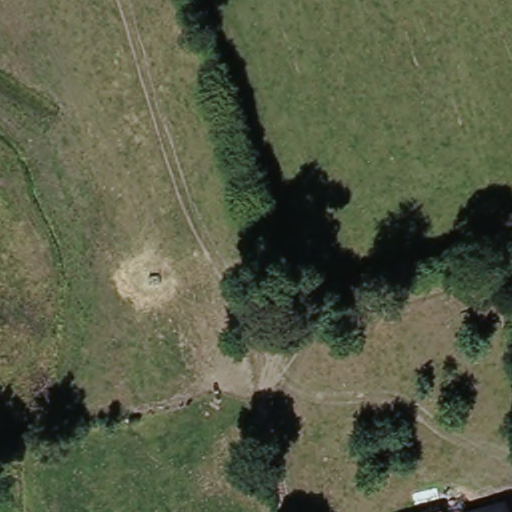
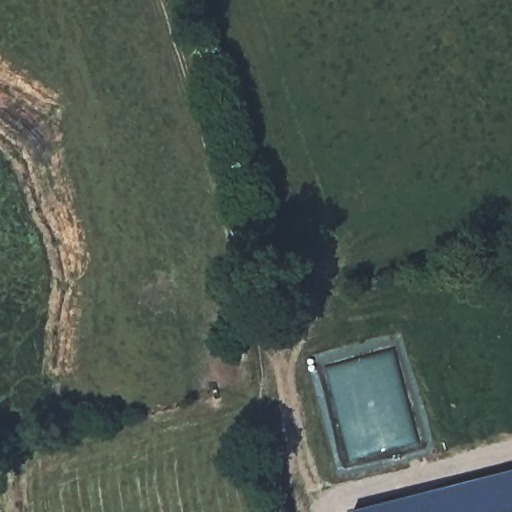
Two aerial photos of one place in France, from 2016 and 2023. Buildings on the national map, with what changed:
new [(512,471),(512,512),(357,512),(356,507),(512,471)]
demolished [(467,512),(508,502),(512,512),(441,512),(465,505),(467,512)]

